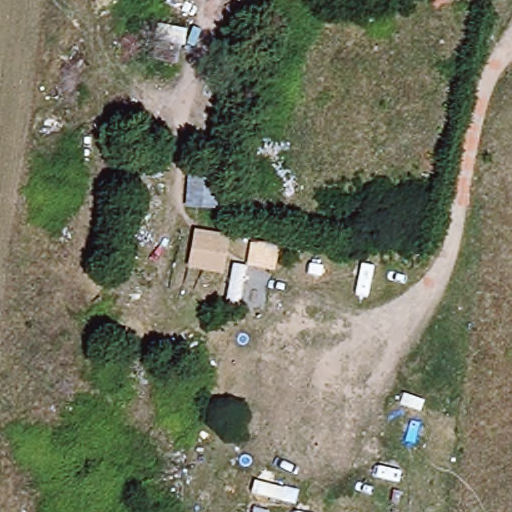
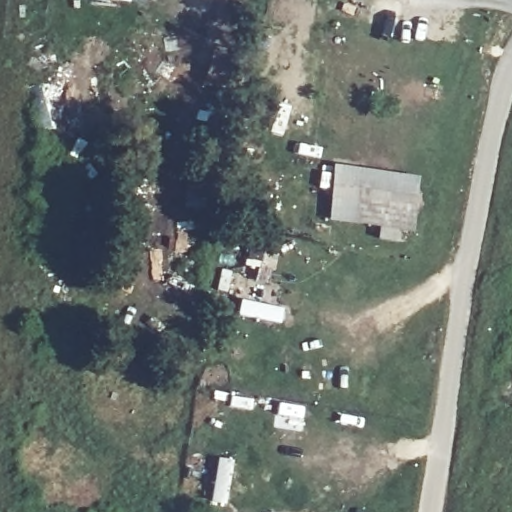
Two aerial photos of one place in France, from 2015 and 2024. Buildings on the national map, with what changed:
new [(329,220),(334,164),(420,176),(413,231),(329,220)]
unchanged [(187,172),(222,176),(219,211),(185,207),(187,172)]
demolished [(230,237),(224,273),(187,268),(192,229),(230,237)]

